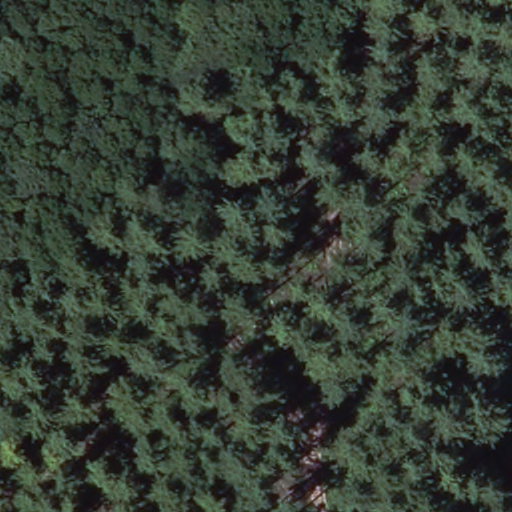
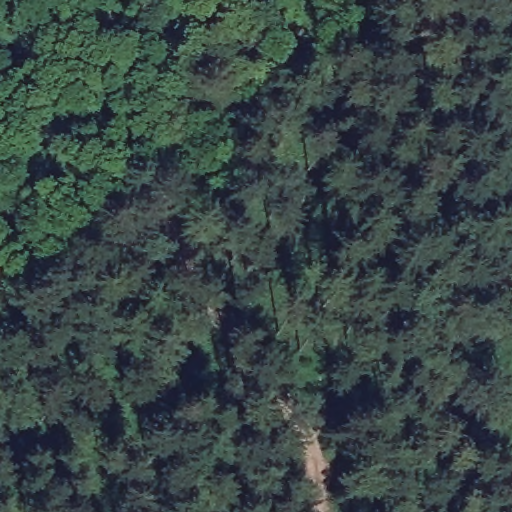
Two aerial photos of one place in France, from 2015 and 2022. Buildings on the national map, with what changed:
unchanged [(512,231),(503,229),(506,209),(512,210),(512,231)]

